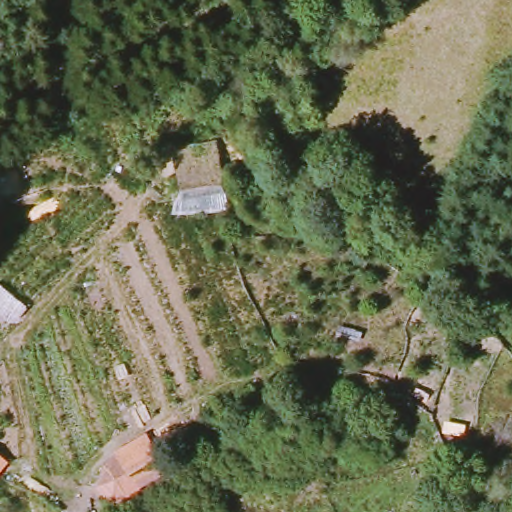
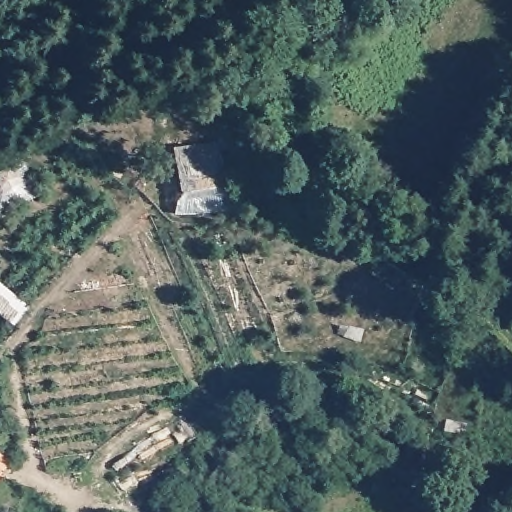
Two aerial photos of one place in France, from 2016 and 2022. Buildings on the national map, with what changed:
unchanged [(223,184),(177,191),(168,146),(213,140),(223,184)]
unchanged [(167,474),(128,498),(113,501),(96,488),(103,466),(113,453),(146,433),(167,474)]
unchanged [(0,456),(7,461),(0,469),(0,456)]

